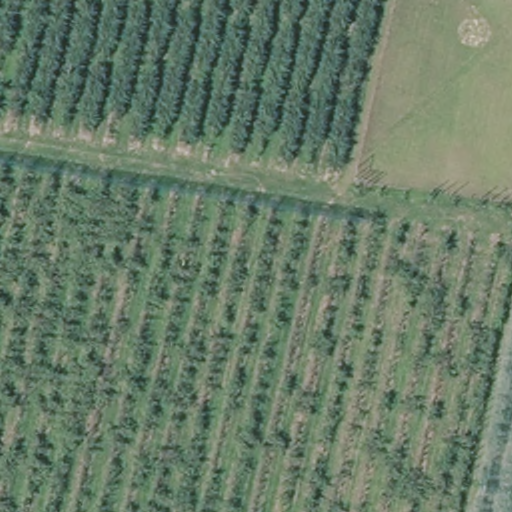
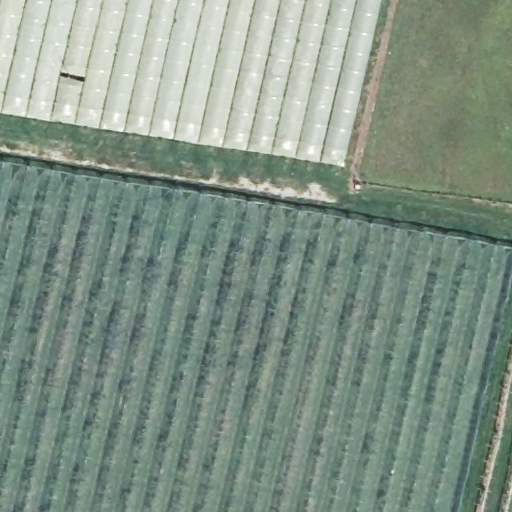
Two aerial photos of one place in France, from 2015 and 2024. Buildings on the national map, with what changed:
new [(343,166),(0,114),(0,0),(381,0),(343,166)]

